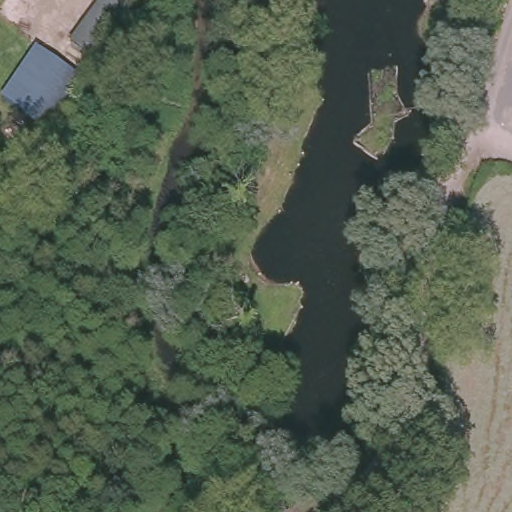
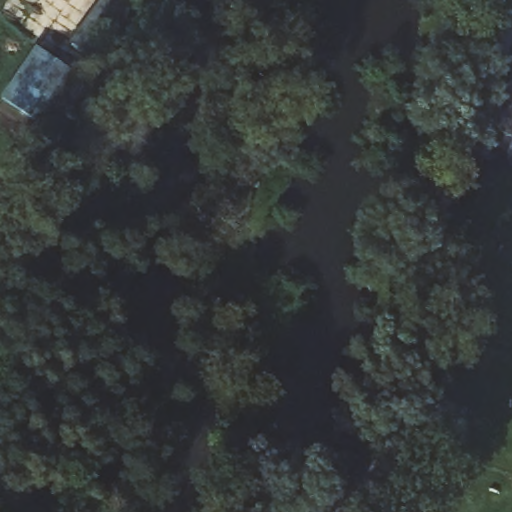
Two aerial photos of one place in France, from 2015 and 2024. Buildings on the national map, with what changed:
unchanged [(100,34),(82,22),(98,0),(124,0),(100,34)]
unchanged [(73,75),(40,127),(0,102),(0,97),(32,48),(73,75)]

